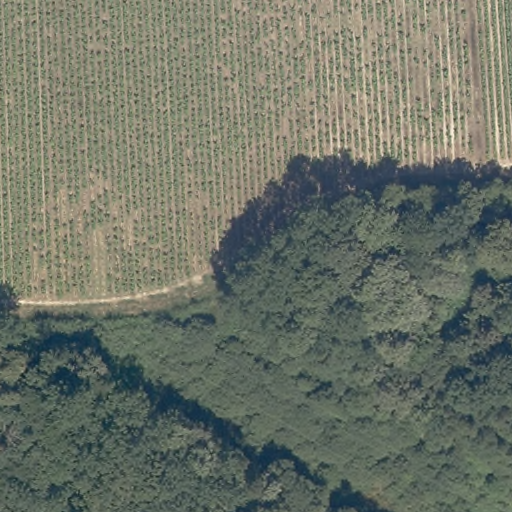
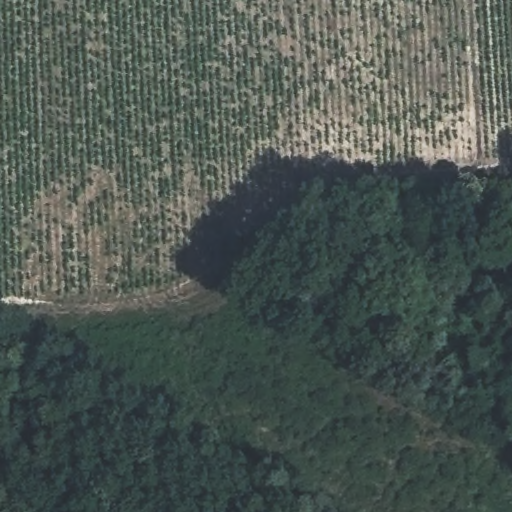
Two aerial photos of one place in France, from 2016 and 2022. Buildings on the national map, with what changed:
unchanged [(512,187),(512,204),(508,204),(506,188),(512,187)]

